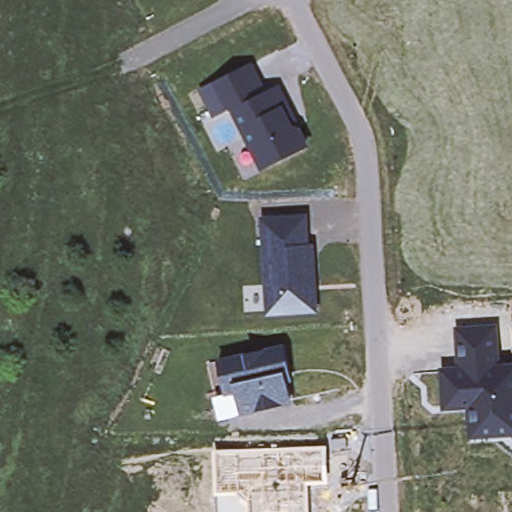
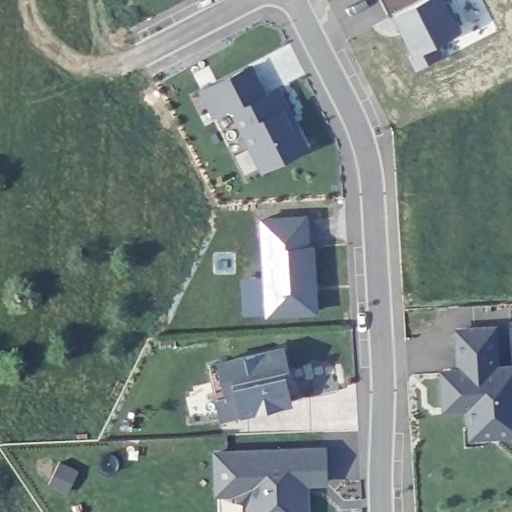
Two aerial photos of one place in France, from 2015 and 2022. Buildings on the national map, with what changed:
new [(409,53),(415,52),(392,11),(388,14),(381,0),(446,0),(461,29),(436,42),(443,54),(416,67),(409,53)]
unchanged [(230,109),(214,119),(200,91),(252,62),(264,89),(279,81),(290,106),(293,104),(313,146),(261,171),(230,109)]
unchanged [(308,215),(311,245),(316,245),(320,313),(267,317),(261,217),(308,215)]
unchanged [(502,365),(512,365),(512,437),(470,439),(468,408),(443,410),(441,367),(458,366),(455,328),(500,325),(502,365)]
unchanged [(292,370),(287,372),(295,403),(244,415),(222,421),(216,397),(226,395),(217,358),(284,343),(292,370)]
new [(246,503),(240,498),(236,494),(214,494),(212,448),(327,445),(328,483),(309,483),(309,512),(246,512),(246,503)]

